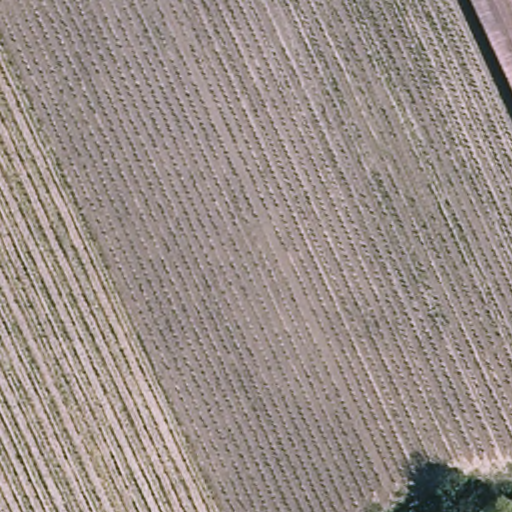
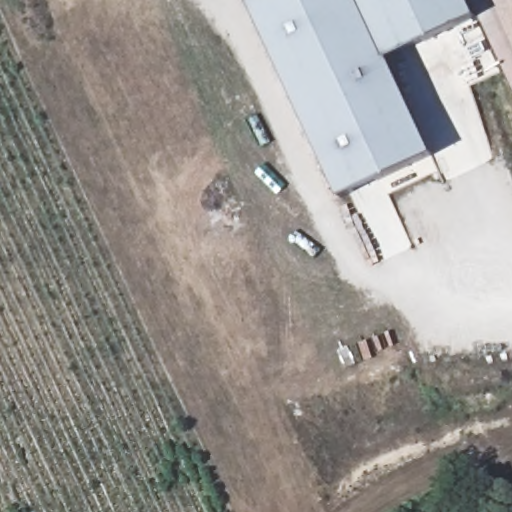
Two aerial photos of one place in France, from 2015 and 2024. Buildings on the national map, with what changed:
new [(256,0),(466,0),(475,18),(388,60),(432,155),(340,198),(248,4),(256,0)]
unchanged [(466,0),(512,0),(512,95),(466,0)]

